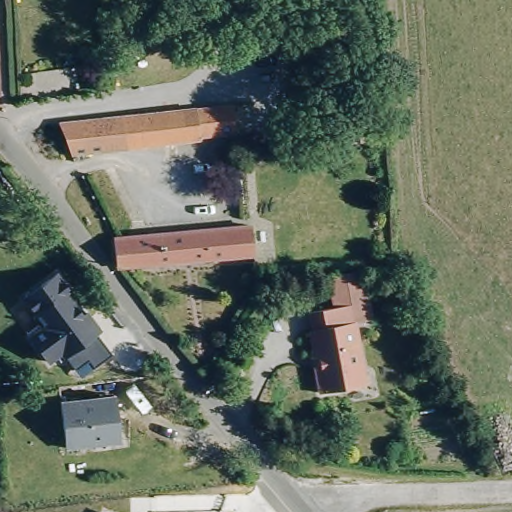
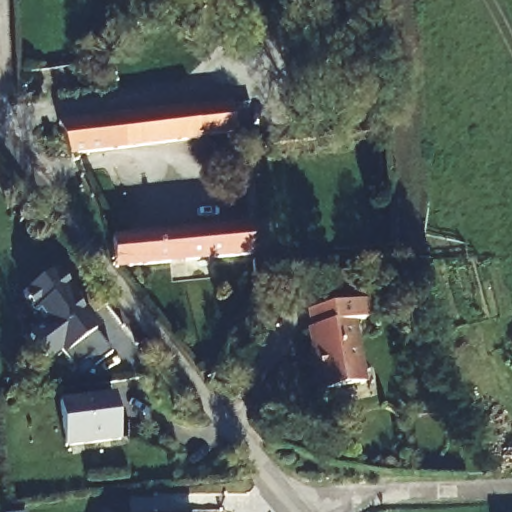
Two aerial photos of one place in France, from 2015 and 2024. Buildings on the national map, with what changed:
unchanged [(199,139),(122,149),(70,156),(58,124),(106,119),(118,118),(231,106),(233,133),(199,136),(199,139)]
unchanged [(249,225),(253,254),(189,260),(185,232),(249,225)]
unchanged [(185,232),(189,260),(115,268),(112,239),(185,232)]
unchanged [(85,380),(68,359),(54,369),(11,307),(53,274),(118,356),(85,380)]
unchanged [(369,384),(364,385),(324,391),(320,369),(321,369),(316,328),(319,327),(316,309),(354,304),(352,292),(372,289),(376,319),(372,320),(360,322),(369,384)]
unchanged [(123,439),(69,444),(64,399),(119,394),(123,439)]

